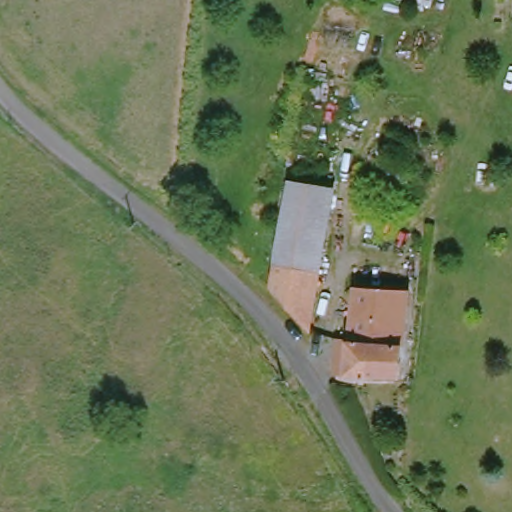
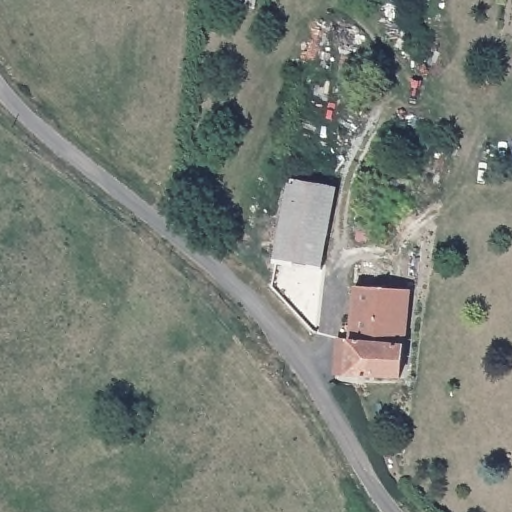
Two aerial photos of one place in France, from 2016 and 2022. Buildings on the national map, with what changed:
unchanged [(281,290),(297,185),(342,192),(317,331),(281,290)]
unchanged [(342,343),(354,344),(360,290),(415,295),(405,388),(350,380),(338,378),(342,343)]

